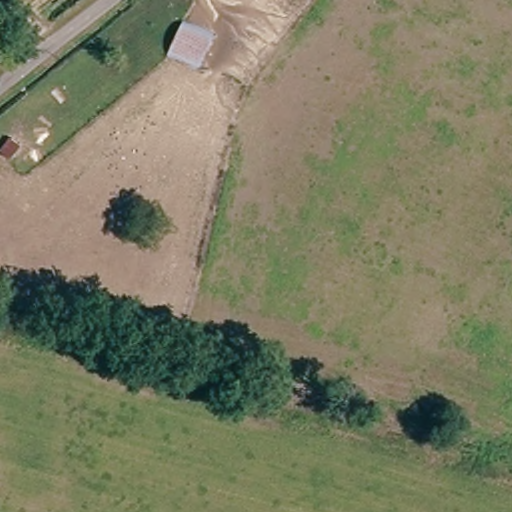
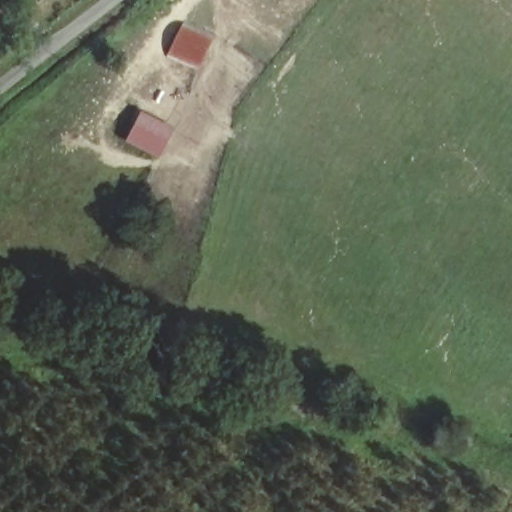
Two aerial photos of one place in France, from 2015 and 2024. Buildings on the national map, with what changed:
unchanged [(215,39),(202,75),(168,59),(182,23),(215,39)]
new [(175,127),(160,158),(126,141),(141,110),(175,127)]

